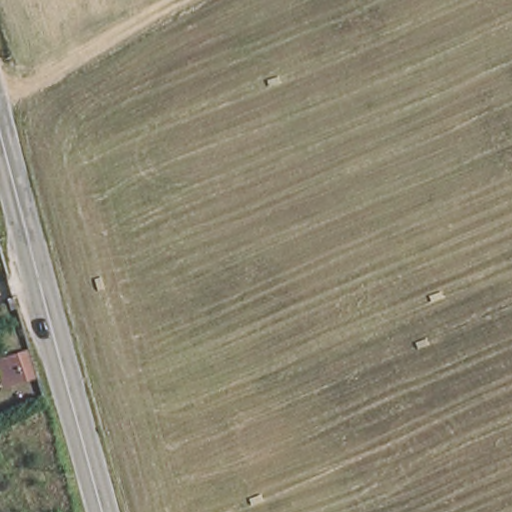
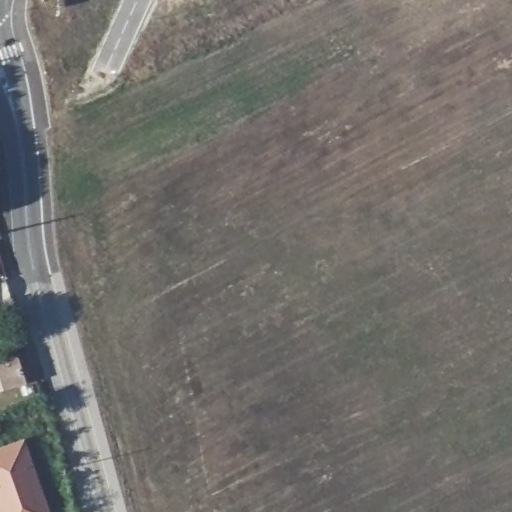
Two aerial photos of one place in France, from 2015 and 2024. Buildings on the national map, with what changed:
new [(17,351),(28,383),(4,391),(0,392),(0,357),(17,351)]
new [(52,512),(0,512),(0,444),(26,435),(52,512)]

